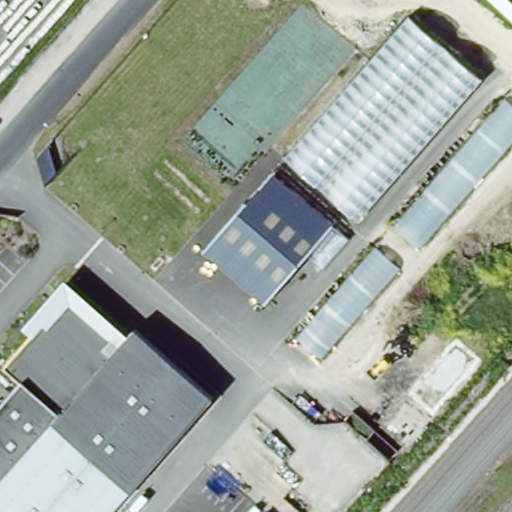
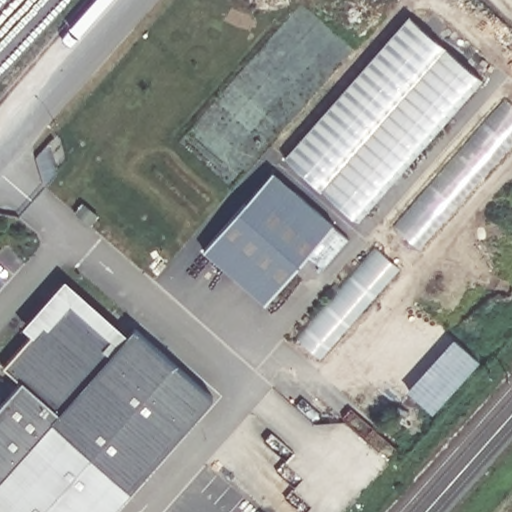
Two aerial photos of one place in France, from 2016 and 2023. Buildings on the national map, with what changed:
unchanged [(483,77),(355,220),(283,155),(410,12),(483,77)]
unchanged [(512,104),(512,139),(419,246),(392,224),(502,95),(512,104)]
unchanged [(333,220),(349,235),(322,267),(305,254),(264,302),(202,250),(273,167),(333,220)]
unchanged [(399,266),(320,355),(294,332),(374,244),(399,266)]
unchanged [(10,365),(38,333),(29,323),(72,275),(137,332),(141,327),(220,396),(116,512),(0,512),(0,411),(30,378),(10,365)]
new [(454,338),(479,361),(432,413),(409,388),(454,338)]

